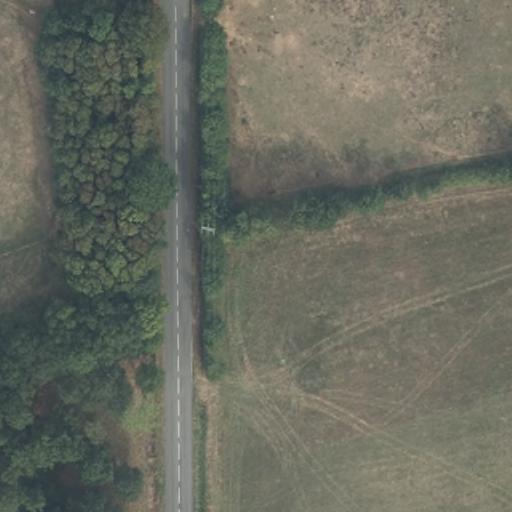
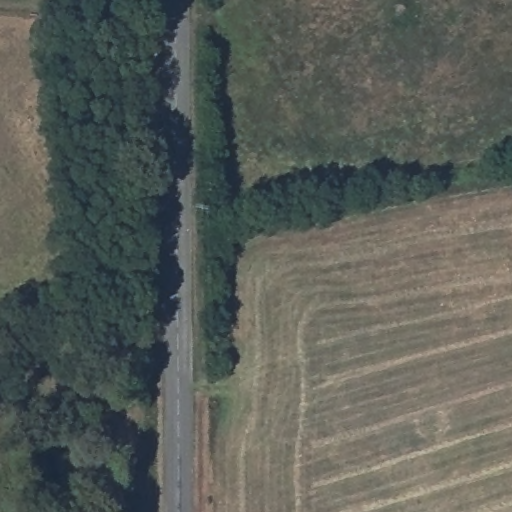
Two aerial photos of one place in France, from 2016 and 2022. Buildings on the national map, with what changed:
[]

